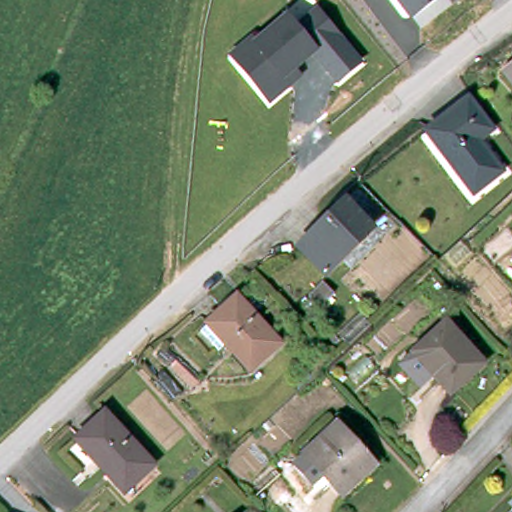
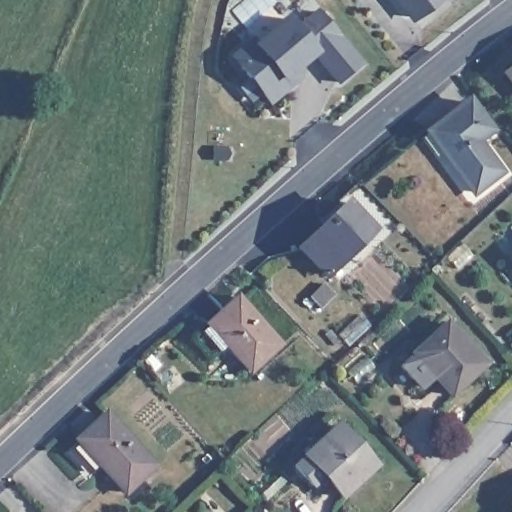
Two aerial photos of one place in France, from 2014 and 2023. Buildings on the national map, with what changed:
unchanged [(409,15),(398,0),(438,0),(409,15)]
unchanged [(355,61),(335,79),(314,52),(294,67),(298,76),(266,102),(230,60),(248,44),(287,16),(311,3),(355,61)]
unchanged [(512,65),(512,85),(502,74),(512,65)]
unchanged [(462,99),(485,127),(469,141),(492,171),(470,189),(439,152),(442,149),(426,127),(462,99)]
unchanged [(292,249),(337,202),(362,228),(319,273),(292,249)]
unchanged [(512,255),(512,257),(511,256),(512,255)]
unchanged [(225,343),(216,352),(197,331),(235,297),(277,341),(247,369),(225,343)]
unchanged [(331,342),(353,321),(362,331),(341,352),(331,342)]
unchanged [(446,322),(482,362),(450,391),(414,352),(446,322)]
unchanged [(122,488),(99,464),(101,462),(76,437),(103,411),(151,462),(122,488)]
unchanged [(337,423),(374,463),(342,493),(305,453),(337,423)]
unchanged [(504,512),(512,505),(512,512),(504,512)]

